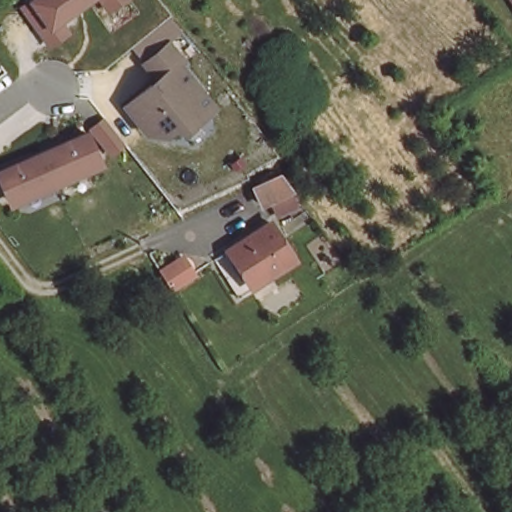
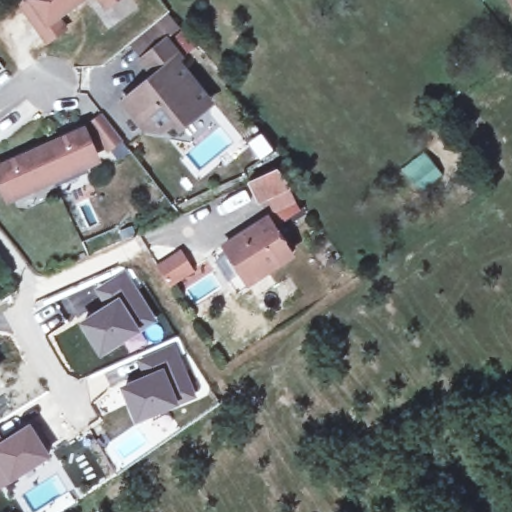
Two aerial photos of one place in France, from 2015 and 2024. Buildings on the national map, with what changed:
unchanged [(27,0),(79,0),(45,24),(27,0)]
unchanged [(111,0),(113,0),(112,1),(111,0)]
unchanged [(143,127),(122,102),(155,75),(142,59),(166,40),(180,57),(177,60),(211,100),(180,127),(174,120),(164,129),(143,127)]
unchanged [(40,148),(57,141),(85,128),(92,143),(87,145),(94,159),(59,175),(54,177),(40,148)]
unchanged [(12,195),(6,181),(2,183),(0,180),(0,166),(40,148),(54,177),(12,195)]
unchanged [(294,186),(265,200),(256,182),(261,179),(282,170),(294,186)]
unchanged [(297,249),(270,266),(272,268),(242,288),(217,249),(230,241),(273,212),(297,249)]
unchanged [(182,253),(192,269),(169,283),(159,267),(182,253)]
new [(80,323),(104,307),(94,290),(125,271),(157,320),(141,331),(102,355),(80,323)]
new [(119,385),(144,375),(135,358),(175,343),(198,396),(178,405),(136,424),(119,385)]
new [(29,426),(49,454),(12,477),(0,485),(0,440),(2,443),(29,426)]

